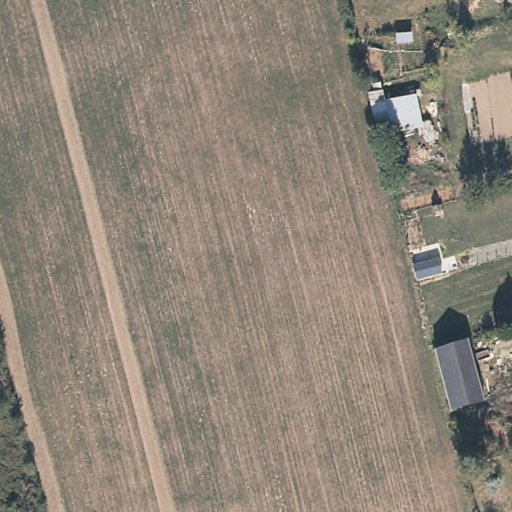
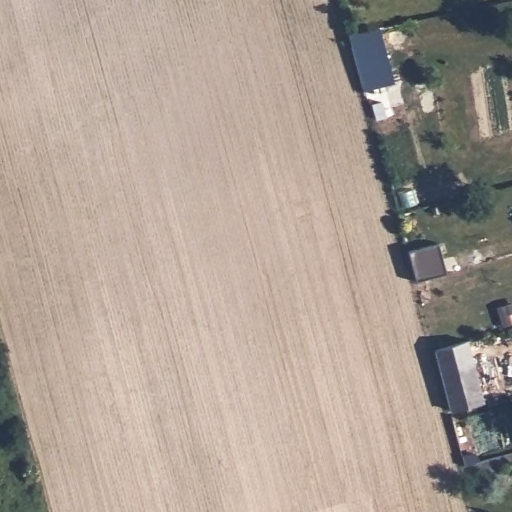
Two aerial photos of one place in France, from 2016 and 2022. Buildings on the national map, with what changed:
demolished [(486,18),(456,20),(454,5),(485,3),(486,18)]
new [(378,26),(394,82),(362,90),(347,35),(378,26)]
unchanged [(366,95),(386,90),(387,99),(418,95),(424,127),(374,135),(366,95)]
unchanged [(450,409),(445,392),(444,386),(434,350),(467,339),(477,377),(479,383),(484,400),(450,409)]

